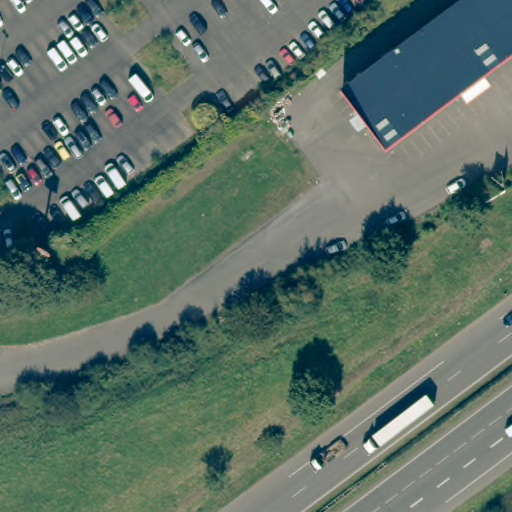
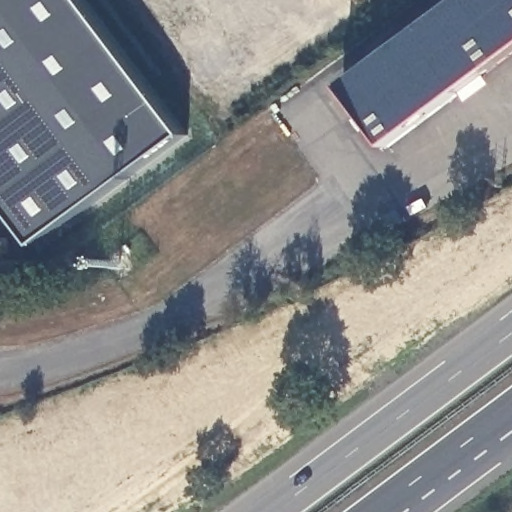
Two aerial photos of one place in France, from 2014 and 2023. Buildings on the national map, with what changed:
new [(34,247),(0,201),(0,0),(84,0),(184,135),(34,247)]
unchanged [(347,80),(454,0),(512,0),(512,50),(392,140),(347,80)]

